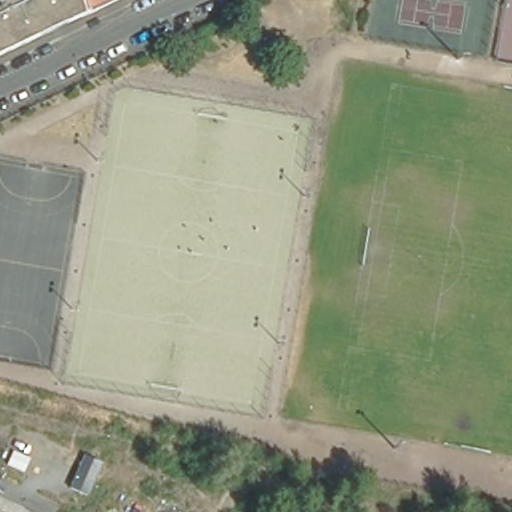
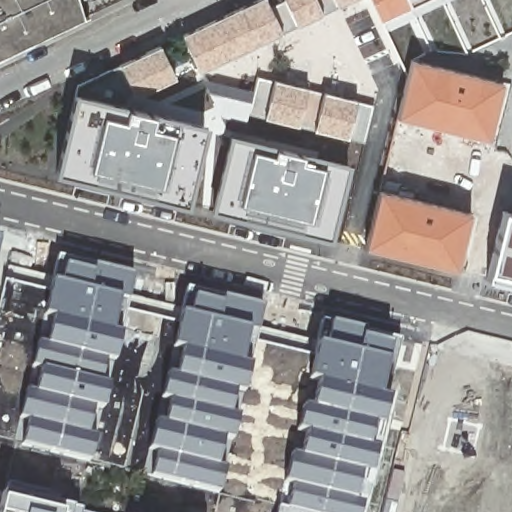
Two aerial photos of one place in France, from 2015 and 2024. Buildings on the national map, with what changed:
unchanged [(82,0),(86,11),(87,15),(0,56),(0,0),(82,0)]
unchanged [(86,11),(82,0),(117,0),(87,15),(86,11)]
new [(266,0),(270,8),(284,1),(295,25),(280,34),(200,73),(182,36),(258,0),(266,0)]
new [(284,0),(315,0),(322,16),(297,28),(284,0)]
new [(333,0),(356,0),(337,9),(333,0)]
new [(380,22),(369,0),(408,0),(411,7),(380,22)]
new [(427,0),(411,7),(408,0),(427,0)]
new [(160,45),(176,79),(135,99),(117,65),(160,45)]
new [(502,84),(488,140),(396,118),(411,61),(502,84)]
new [(201,81),(254,90),(257,77),(272,82),(273,81),(355,101),(355,102),(371,106),(363,143),(346,140),(263,120),(248,116),(246,122),(219,116),(201,81)]
new [(205,125),(186,206),(53,174),(73,94),(205,125)]
new [(274,148),(302,155),(350,164),(330,242),(210,212),(229,136),(274,148)]
new [(379,191),(470,214),(456,271),(364,249),(379,191)]
new [(486,271),(501,210),(512,212),(512,285),(485,278),(486,271)]
new [(45,295),(49,284),(56,257),(133,275),(127,299),(178,313),(185,287),(221,297),(261,308),(255,333),(312,350),(313,345),(321,321),(328,324),(360,331),(360,333),(398,340),(382,397),(389,399),(368,492),(365,492),(360,512),(0,512),(0,283),(45,295)]

